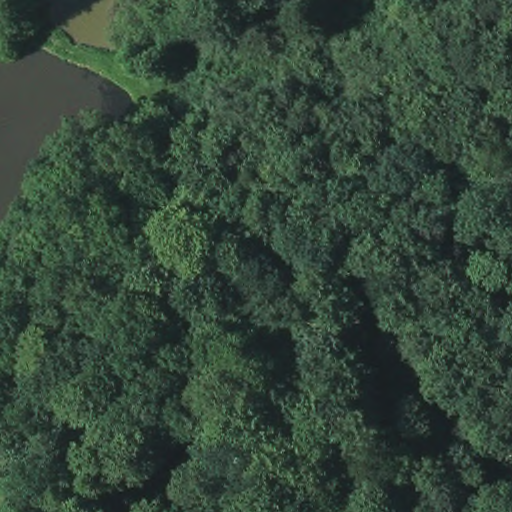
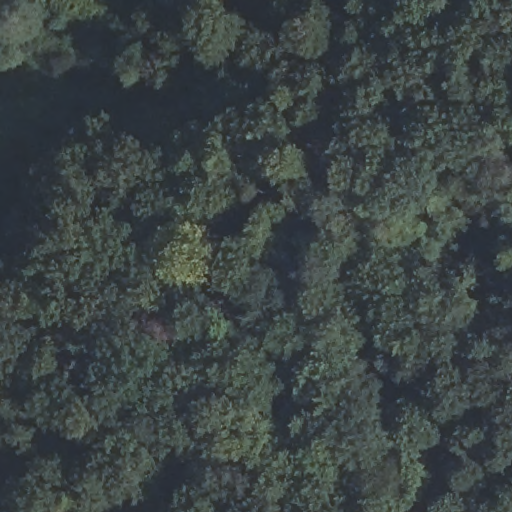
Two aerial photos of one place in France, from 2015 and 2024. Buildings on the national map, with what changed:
unchanged [(3,27),(0,25),(0,4),(13,13),(3,27)]

